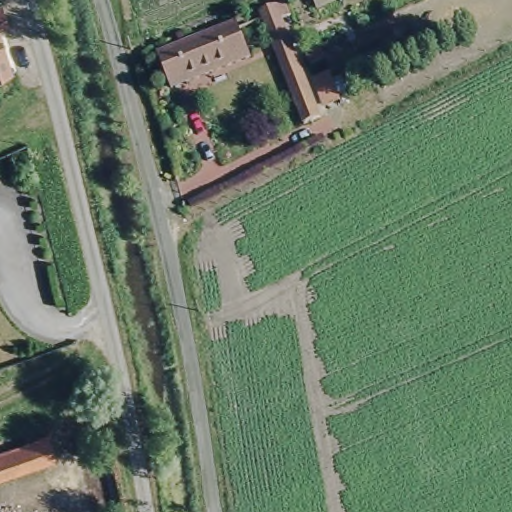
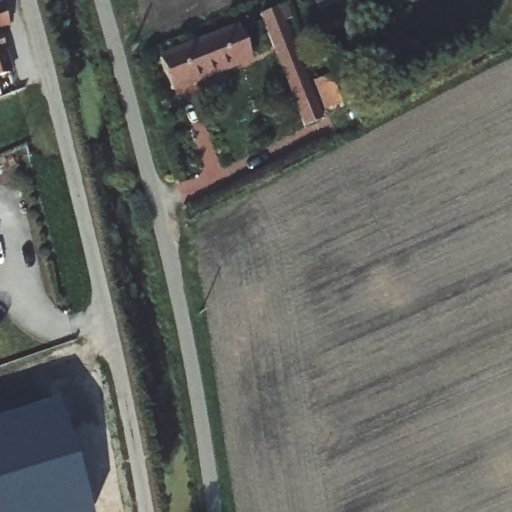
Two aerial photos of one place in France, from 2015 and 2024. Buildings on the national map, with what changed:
unchanged [(9,28),(0,30),(0,7),(2,6),(9,28)]
unchanged [(261,21),(280,14),(319,124),(300,132),(261,21)]
unchanged [(250,62),(170,92),(161,61),(238,33),(250,62)]
unchanged [(0,78),(0,37),(12,74),(0,78)]
unchanged [(322,59),(326,70),(310,76),(307,66),(306,64),(322,59)]
new [(89,512),(0,512),(0,418),(56,401),(89,512)]

